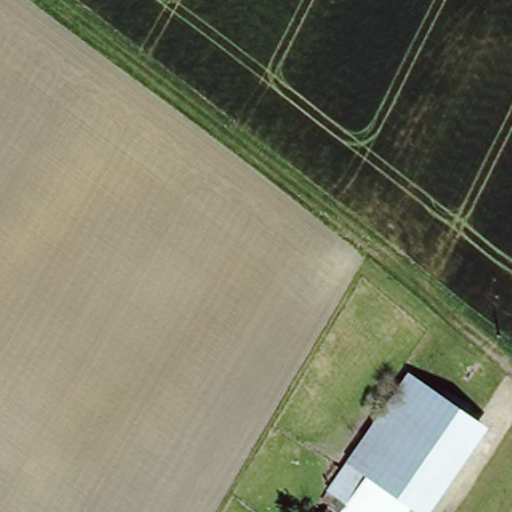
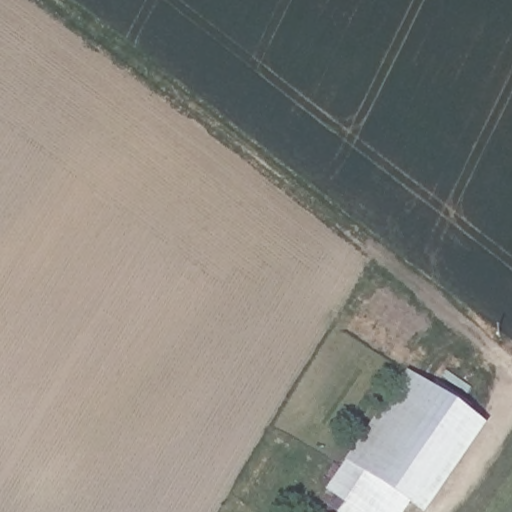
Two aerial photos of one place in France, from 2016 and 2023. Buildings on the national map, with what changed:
unchanged [(342,453),(349,458),(362,441),(350,433),(368,408),(378,416),(407,374),(488,430),(432,512),(413,512),(408,509),(406,512),(339,512),(343,504),(325,494),(340,472),(332,468),(342,453)]
unchanged [(313,499),(318,490),(325,494),(343,504),(339,512),(327,512),(328,509),(313,499)]

